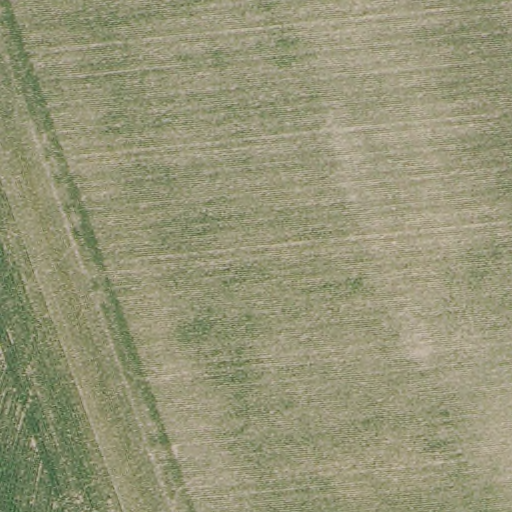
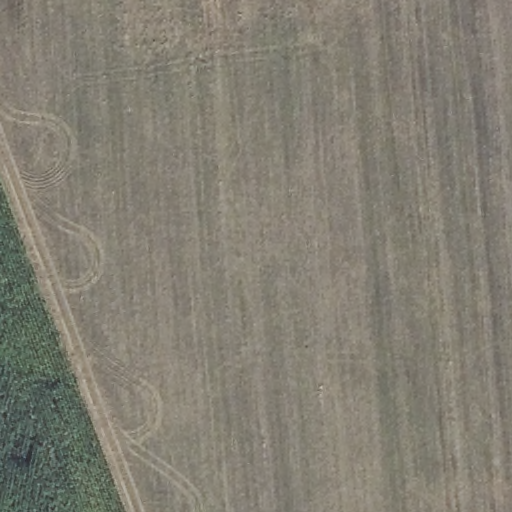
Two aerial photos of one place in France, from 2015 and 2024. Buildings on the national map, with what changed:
[]

